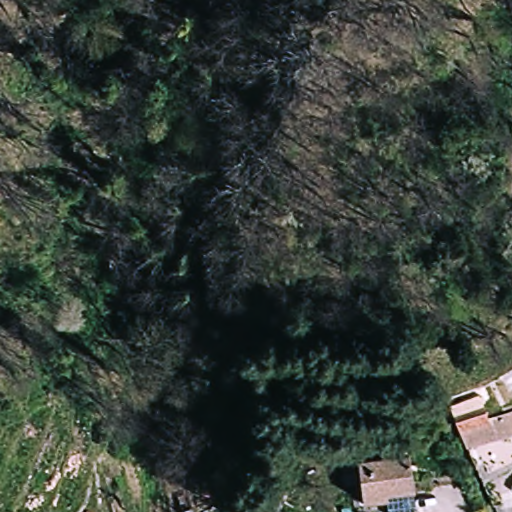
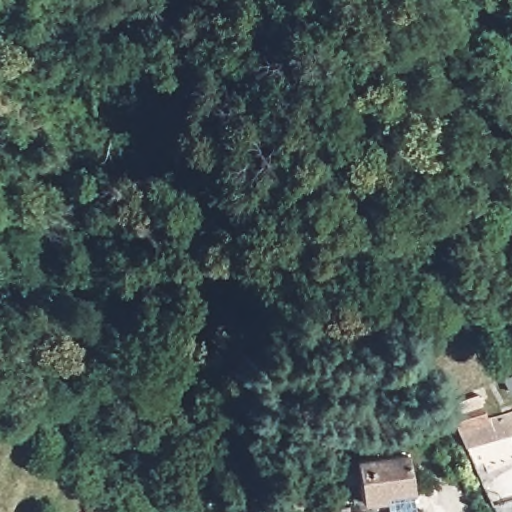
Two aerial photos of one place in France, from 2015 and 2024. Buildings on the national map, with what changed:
unchanged [(469,401),(481,395),(489,417),(512,411),(512,438),(468,452),(459,426),(450,405),(469,401)]
unchanged [(413,455),(415,487),(390,490),(390,499),(365,501),(364,482),(348,483),(346,463),(413,455)]

